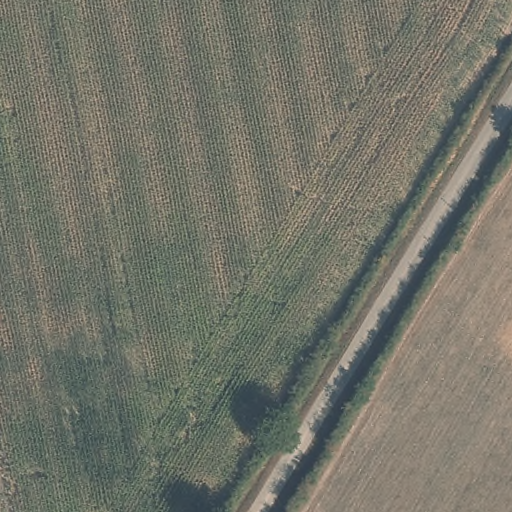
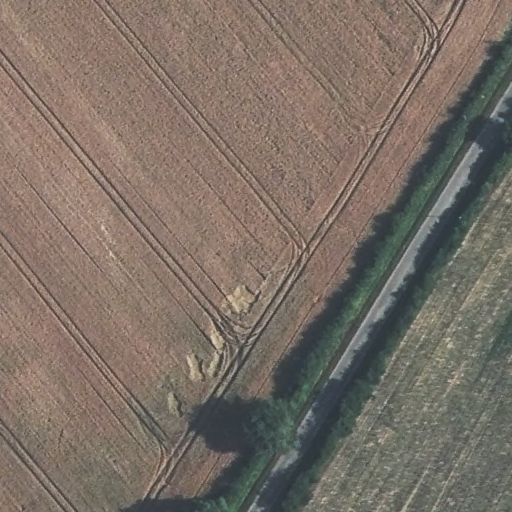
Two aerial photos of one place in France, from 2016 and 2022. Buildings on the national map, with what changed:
[]

